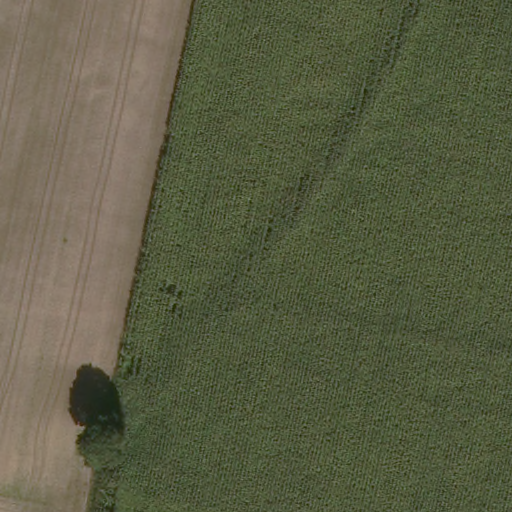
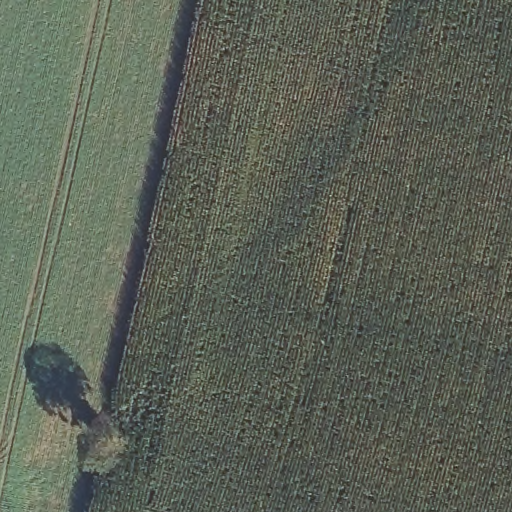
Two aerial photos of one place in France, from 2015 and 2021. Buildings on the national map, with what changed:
unchanged [(101,419),(127,424),(122,455),(96,449),(101,419)]

